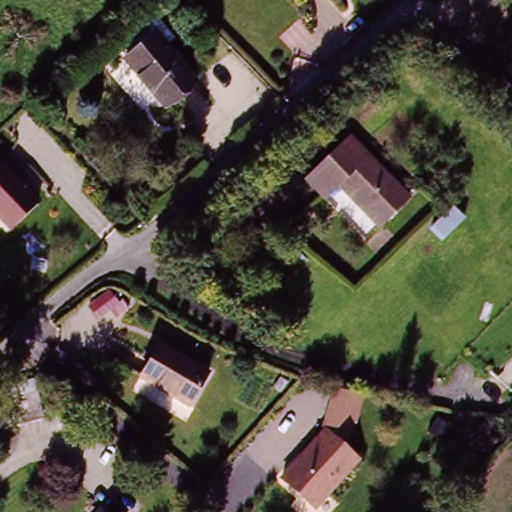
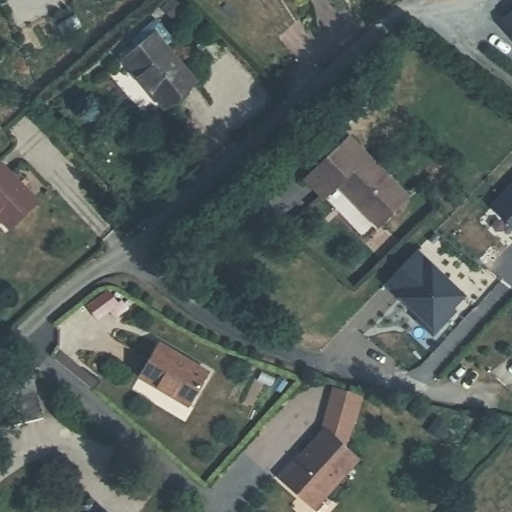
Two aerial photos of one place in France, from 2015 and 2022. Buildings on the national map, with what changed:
new [(502,17),(512,10),(512,31),(502,17)]
unchanged [(156,41),(196,81),(165,103),(125,65),(156,41)]
unchanged [(346,142),(406,192),(374,220),(336,187),(322,199),(304,184),(346,142)]
unchanged [(41,204),(11,227),(0,215),(0,165),(3,162),(41,204)]
new [(463,295),(452,307),(456,311),(434,335),(418,320),(422,316),(386,284),(415,251),(463,295)]
unchanged [(157,345),(209,369),(193,403),(139,378),(157,345)]
unchanged [(364,391),(348,447),(364,462),(314,507),(281,475),(326,430),(336,383),(364,391)]
unchanged [(0,420),(0,397),(30,390),(33,400),(38,430),(3,436),(0,420)]
unchanged [(98,502),(111,512),(91,512),(98,502)]

